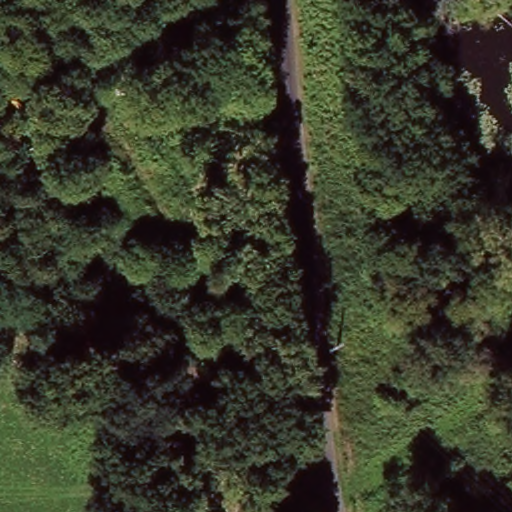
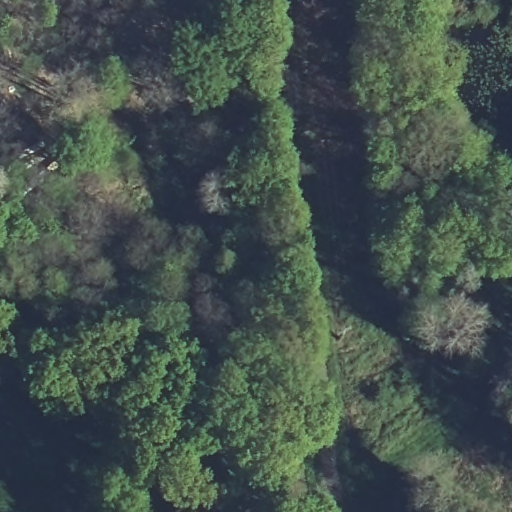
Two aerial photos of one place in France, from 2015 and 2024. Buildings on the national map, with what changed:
unchanged [(214,505),(205,512),(182,512),(169,495),(192,477),(214,505)]

